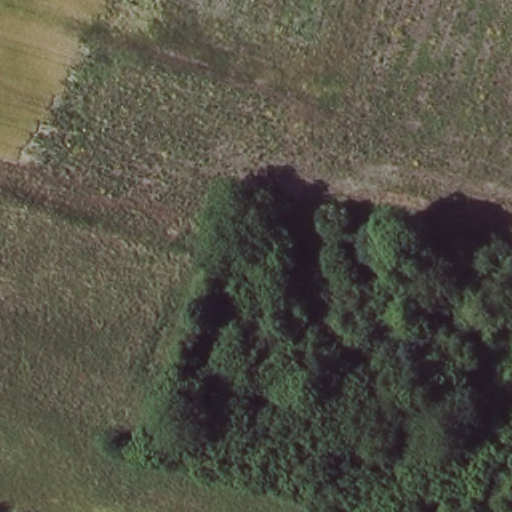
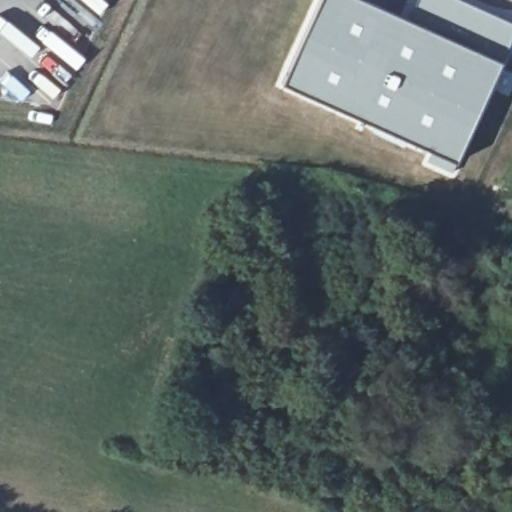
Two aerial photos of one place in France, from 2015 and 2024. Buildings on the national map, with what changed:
new [(502,63),(456,161),(451,171),(428,161),(434,149),(283,83),(322,0),(366,0),(410,20),(419,0),(462,0),(512,23),(512,40),(502,63)]

